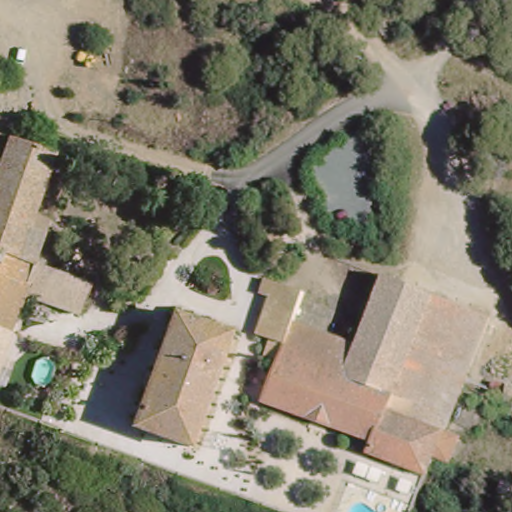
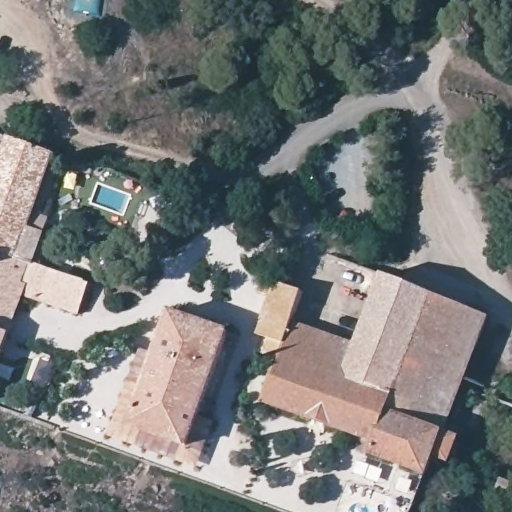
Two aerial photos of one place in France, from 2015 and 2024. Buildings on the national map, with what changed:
unchanged [(52,150),(30,211),(14,254),(0,249),(0,156),(8,133),(52,150)]
unchanged [(14,254),(30,211),(46,217),(30,262),(88,283),(77,313),(20,293),(0,346),(0,249),(14,254)]
unchanged [(424,473),(366,451),(370,438),(262,400),(276,360),(262,355),(269,338),(255,332),(268,296),(258,292),(263,279),(300,291),(289,320),(352,344),(382,276),(484,317),(441,431),(457,436),(447,462),(431,455),(426,467),(424,473)]
unchanged [(135,430),(174,317),(228,336),(187,449),(135,430)]

